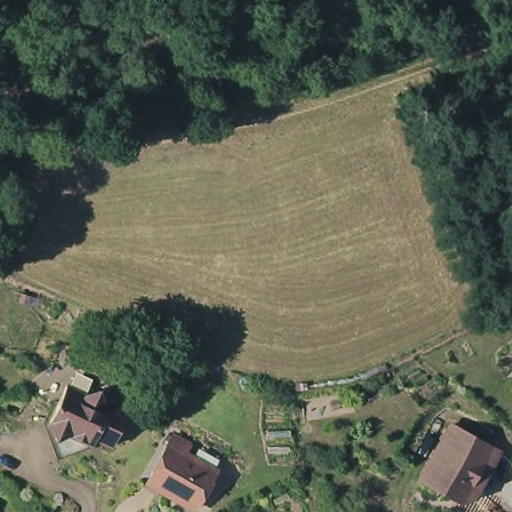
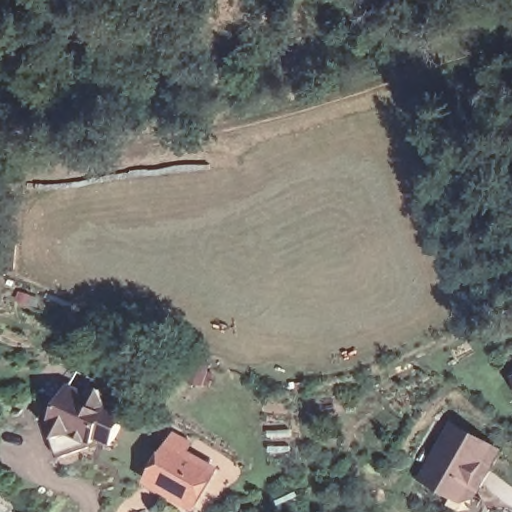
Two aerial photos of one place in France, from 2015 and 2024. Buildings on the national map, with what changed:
unchanged [(97,428),(93,437),(65,448),(52,414),(70,377),(89,386),(102,381),(107,394),(128,404),(115,432),(113,436),(97,428)]
unchanged [(500,432),(475,479),(464,482),(424,459),(454,406),(500,432)]
unchanged [(197,499),(149,473),(171,434),(176,425),(192,434),(187,443),(218,461),(197,499)]

